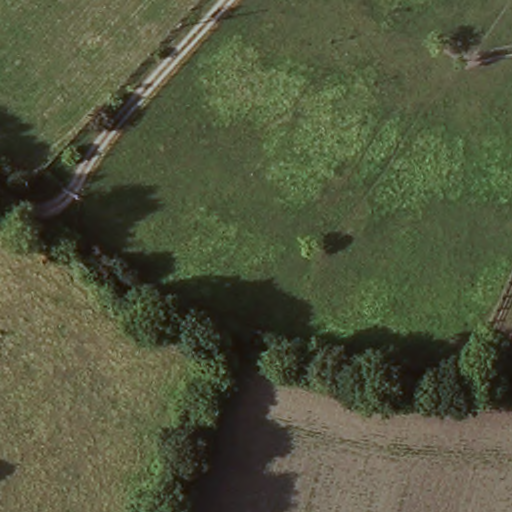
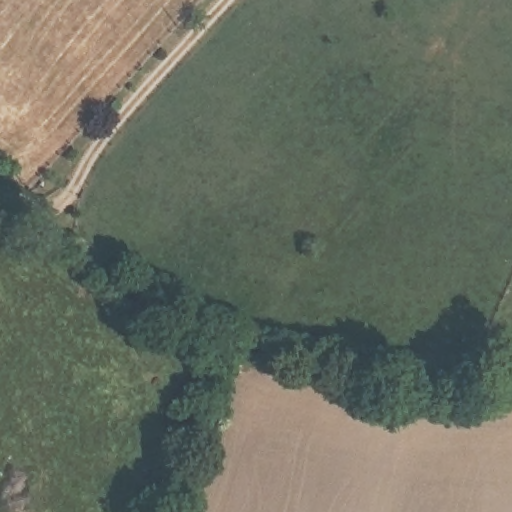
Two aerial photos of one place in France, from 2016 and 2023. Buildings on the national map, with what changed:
[]

